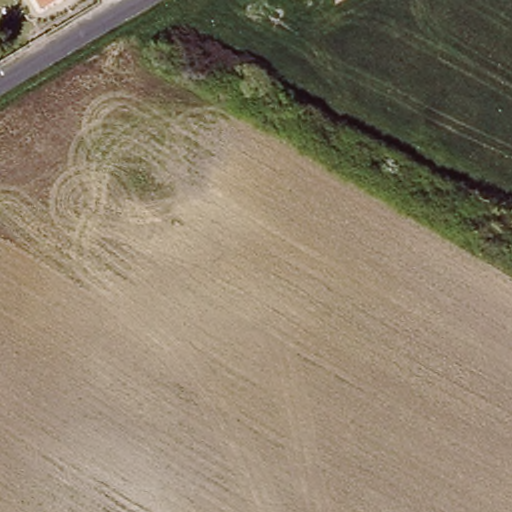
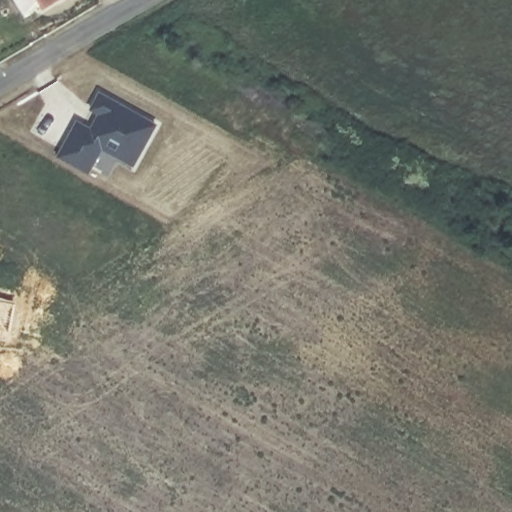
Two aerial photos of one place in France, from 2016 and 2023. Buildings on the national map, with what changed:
unchanged [(37,12),(28,0),(54,0),(37,12)]
new [(136,168),(105,151),(91,176),(58,160),(79,121),(92,127),(98,115),(91,111),(100,92),(160,123),(136,168)]

